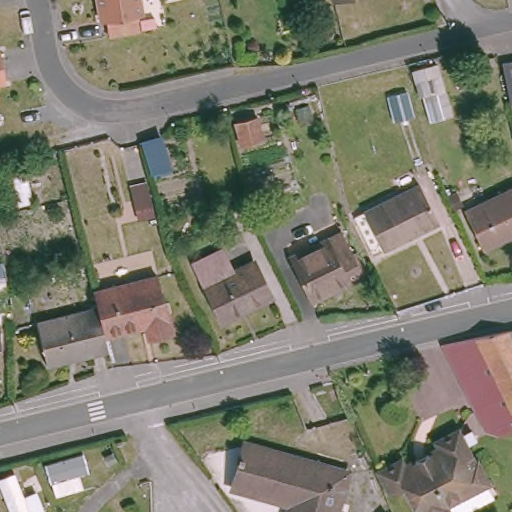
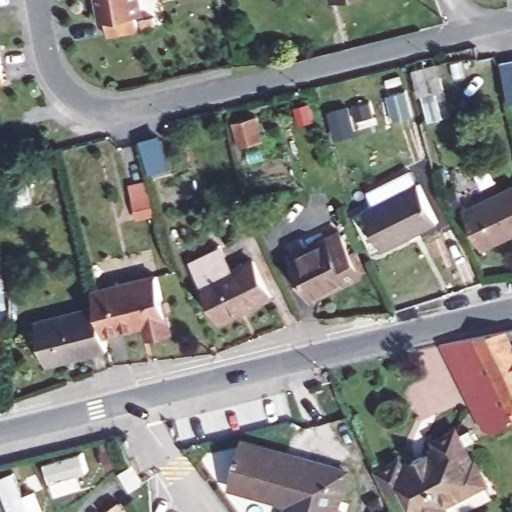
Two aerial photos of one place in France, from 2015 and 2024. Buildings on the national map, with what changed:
unchanged [(141,17),(144,29),(114,35),(111,20),(104,21),(100,0),(146,0),(149,16),(141,17)]
unchanged [(2,52),(7,80),(0,81),(0,52),(2,52)]
unchanged [(505,57),(512,55),(512,91),(505,57)]
unchanged [(236,120),(263,118),(265,141),(239,144),(236,120)]
unchanged [(145,142),(172,139),(176,167),(149,171),(145,142)]
unchanged [(423,182),(440,221),(384,247),(366,208),(423,182)]
unchanged [(482,244),(465,206),(512,184),(512,229),(482,244)]
unchanged [(344,227),(363,272),(330,287),(328,282),(310,290),(292,251),(344,227)]
unchanged [(222,244),(234,267),(256,258),(272,292),(221,315),(195,256),(222,244)]
unchanged [(158,273),(169,333),(148,337),(145,322),(104,331),(97,300),(94,287),(158,273)]
unchanged [(46,357),(37,312),(97,300),(104,331),(106,344),(46,357)]
unchanged [(445,337),(512,325),(512,338),(511,338),(512,340),(512,420),(487,432),(445,337)]
unchanged [(404,450),(406,456),(441,440),(439,433),(458,425),(473,457),(476,455),(486,477),(484,478),(491,493),(448,512),(445,512),(442,506),(427,512),(416,512),(404,484),(397,487),(384,458),(404,450)]
unchanged [(340,495),(348,498),(344,512),(290,512),(293,498),(232,482),(235,473),(244,437),(347,465),(340,495)]

